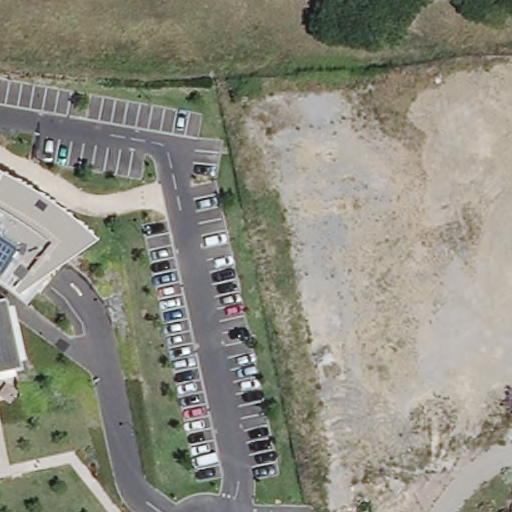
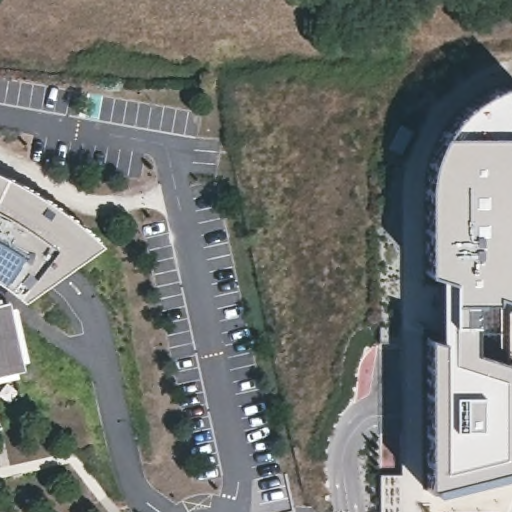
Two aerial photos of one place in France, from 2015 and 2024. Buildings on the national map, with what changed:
new [(511,136),(512,303),(472,301),(472,357),(511,368),(511,472),(426,486),(423,272),(427,162),(436,134),(460,110),(479,97),(508,84),(511,136)]
unchanged [(51,204),(103,246),(25,301),(0,283),(0,175),(51,204)]
unchanged [(11,302),(26,375),(0,380),(0,304),(11,302)]

